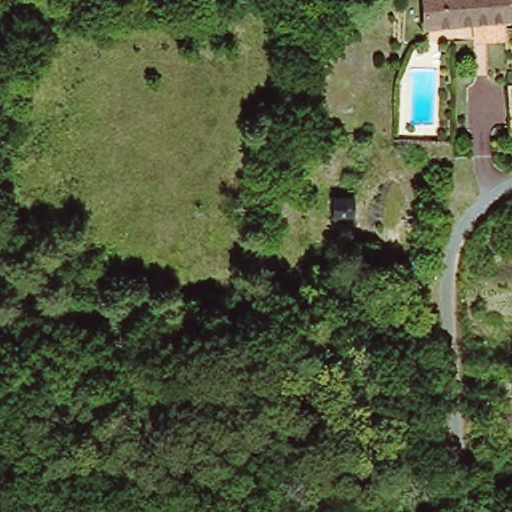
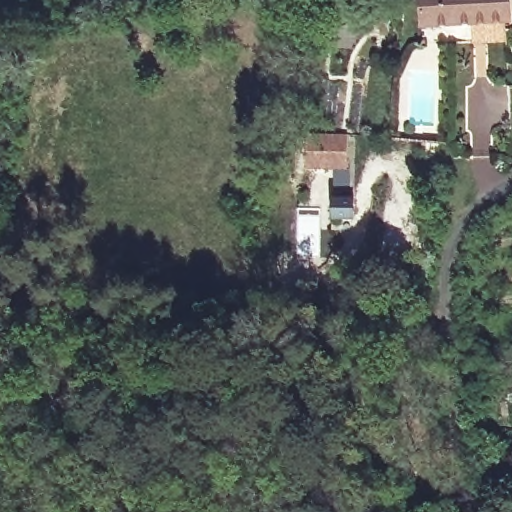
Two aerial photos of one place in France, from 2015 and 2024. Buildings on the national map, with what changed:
unchanged [(512,0),(512,20),(436,26),(434,0),(512,0)]
new [(307,169),(307,133),(347,134),(347,169),(307,169)]
unchanged [(335,200),(347,201),(345,213),(333,212),(335,200)]

